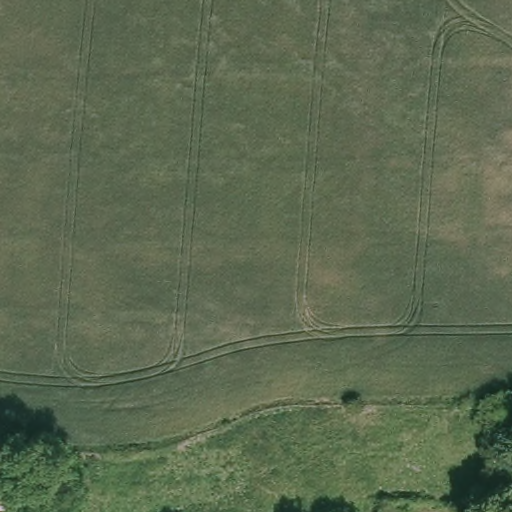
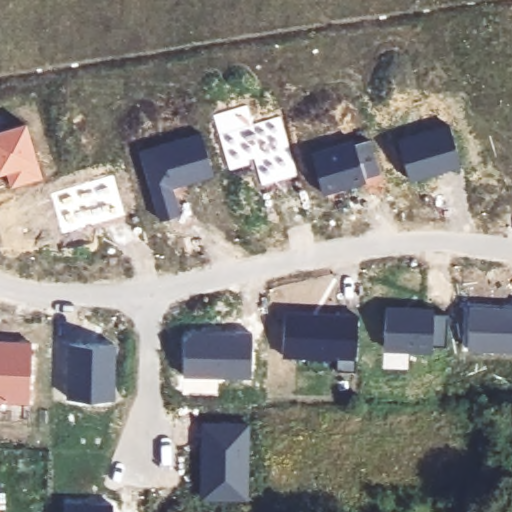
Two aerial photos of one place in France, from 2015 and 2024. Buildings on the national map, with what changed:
new [(253,124),(282,116),(298,176),(262,186),(255,159),(249,160),(250,165),(230,171),(213,115),(249,105),(253,124)]
new [(44,178),(11,187),(7,171),(0,173),(0,129),(27,122),(39,163),(44,178)]
new [(461,166),(411,181),(397,139),(450,125),(461,166)]
new [(214,176),(177,185),(173,189),(180,213),(161,218),(138,150),(201,132),(214,176)]
new [(380,172),(365,176),(367,182),(323,194),(310,152),(353,139),(354,144),(371,139),(380,172)]
new [(127,215),(62,233),(50,193),(115,174),(127,215)]
new [(469,349),(470,302),(512,304),(512,351),(469,349)]
new [(434,313),(449,314),(447,346),(432,344),(432,353),(385,349),(387,305),(435,308),(434,313)]
new [(355,370),(336,369),(337,358),(285,356),(287,311),(358,315),(355,370)]
new [(185,337),(194,329),(252,331),(252,378),(184,376),(185,337)]
new [(0,401),(0,339),(32,341),(30,402),(0,401)]
new [(116,398),(67,397),(69,343),(116,346),(116,398)]
new [(249,500),(202,499),(202,421),(250,423),(249,500)]
unchanged [(0,481),(1,481),(1,509),(0,509),(0,481)]
new [(65,512),(65,502),(113,504),(113,512),(65,512)]

